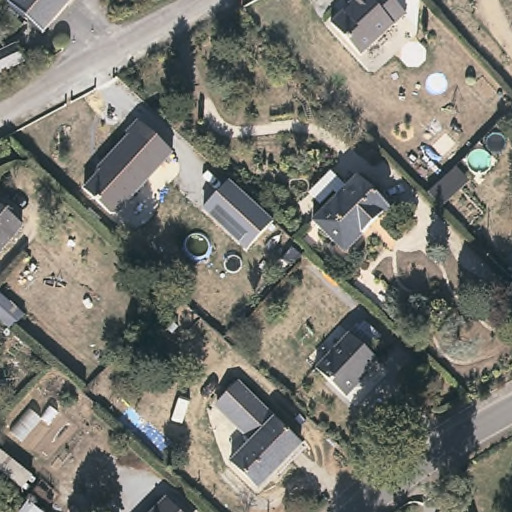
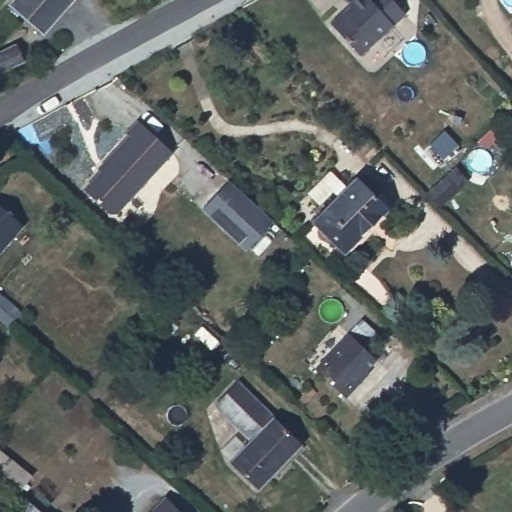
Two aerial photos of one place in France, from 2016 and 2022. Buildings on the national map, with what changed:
unchanged [(68,0),(41,32),(25,19),(8,5),(10,1),(11,0),(68,0)]
unchanged [(358,56),(327,24),(349,5),(347,3),(350,0),(394,0),(405,13),(358,56)]
unchanged [(17,48),(23,45),(26,52),(27,56),(23,59),(24,60),(2,70),(4,75),(0,77),(0,51),(15,44),(17,48)]
unchanged [(172,155),(115,216),(108,217),(82,193),(107,166),(104,164),(128,138),(125,136),(137,123),(172,155)]
unchanged [(265,214),(273,222),(248,250),(203,208),(229,180),(265,214)]
unchanged [(387,212),(346,255),(337,247),(314,224),(357,180),(387,212)]
unchanged [(17,224),(3,243),(0,246),(0,206),(19,221),(17,224)]
unchanged [(11,333),(0,323),(0,298),(23,319),(11,333)]
unchanged [(360,389),(346,403),(315,372),(350,336),(378,364),(366,376),(369,379),(360,389)]
unchanged [(251,438),(236,424),(215,404),(236,382),(257,402),(272,416),(301,442),(257,487),(230,461),(251,438)]
unchanged [(176,512),(155,512),(164,502),(176,512)]
unchanged [(28,505),(37,512),(22,512),(28,505)]

